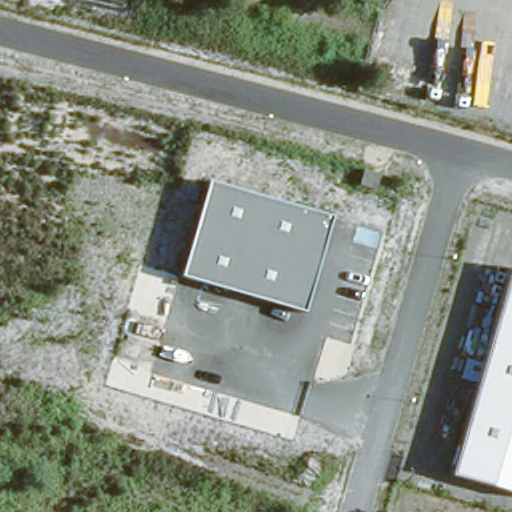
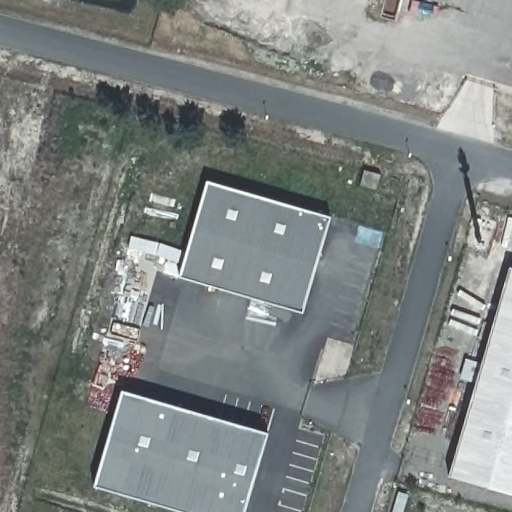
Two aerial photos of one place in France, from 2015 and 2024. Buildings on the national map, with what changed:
unchanged [(180,277),(209,181),(331,217),(302,312),(180,277)]
unchanged [(512,271),(512,373),(480,364),(506,269),(512,271)]
unchanged [(512,498),(447,480),(480,364),(512,373),(512,498)]
new [(240,512),(180,512),(89,485),(119,388),(263,433),(240,512)]

